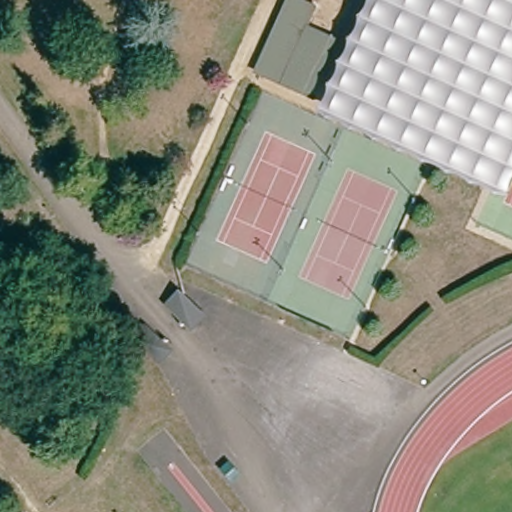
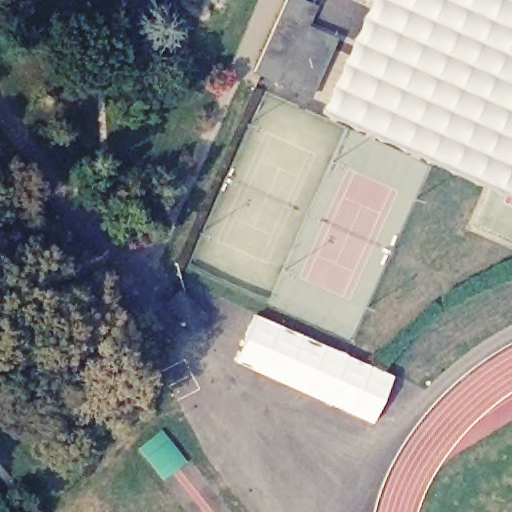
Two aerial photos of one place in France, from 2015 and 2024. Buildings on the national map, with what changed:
unchanged [(309,30),(334,41),(311,93),(264,72),(297,0),(305,0),(319,6),(309,30)]
unchanged [(512,158),(499,187),(326,107),(373,0),(512,0),(512,158)]
unchanged [(185,334),(157,304),(177,290),(203,320),(185,334)]
new [(254,312),(340,350),(393,374),(370,422),(300,391),(233,360),(254,312)]
unchanged [(152,373),(125,340),(145,321),(173,352),(152,373)]

